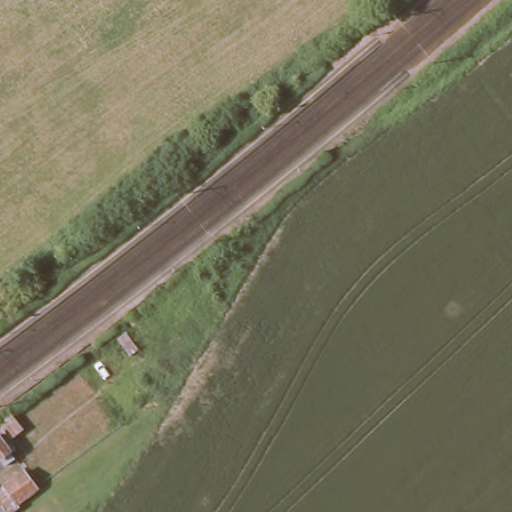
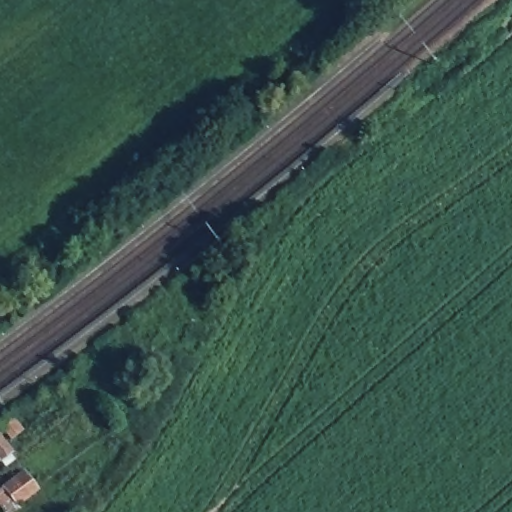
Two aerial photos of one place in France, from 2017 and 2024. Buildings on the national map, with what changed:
unchanged [(19,512),(7,512),(0,504),(0,485),(20,467),(40,493),(19,512)]

